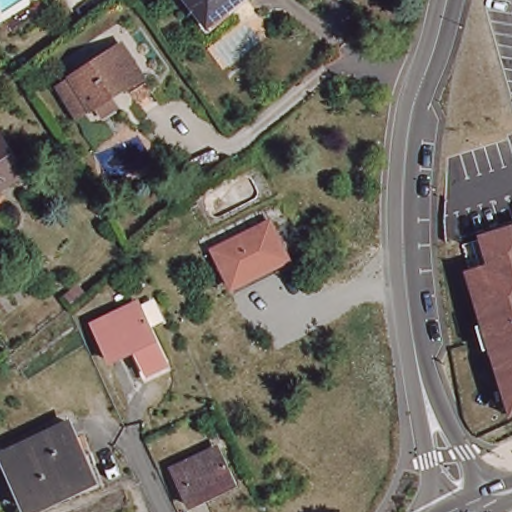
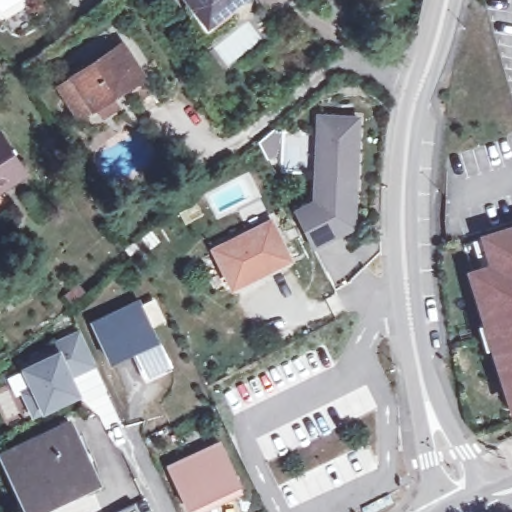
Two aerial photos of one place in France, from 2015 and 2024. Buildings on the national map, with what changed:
unchanged [(190,0),(237,0),(232,4),(208,23),(205,20),(190,0)]
unchanged [(101,116),(95,106),(78,117),(57,87),(121,45),(143,77),(153,92),(137,103),(126,87),(125,85),(109,97),(115,106),(101,116)]
new [(316,192),(320,117),(359,119),(355,194),(353,227),(312,247),(295,212),(315,202),(316,192)]
unchanged [(5,199),(0,202),(0,144),(4,142),(28,181),(11,192),(10,190),(2,195),(5,199)]
demolished [(512,151),(512,226),(510,227),(502,202),(487,207),(480,185),(511,175),(504,154),(512,151)]
unchanged [(290,263),(232,292),(213,254),(270,225),(290,263)]
unchanged [(466,271),(488,262),(480,235),(512,225),(512,414),(511,415),(466,271)]
unchanged [(155,306),(166,327),(152,334),(169,368),(150,378),(137,352),(110,366),(91,327),(108,320),(138,305),(141,311),(142,312),(155,306)]
new [(34,387),(25,369),(58,353),(54,345),(80,332),(95,363),(80,370),(76,360),(65,365),(78,393),(34,413),(24,392),(34,387)]
unchanged [(26,505),(2,454),(70,422),(79,443),(96,478),(87,482),(52,499),(29,510),(26,505)]
unchanged [(236,483),(190,506),(171,467),(218,445),(236,483)]
new [(138,512),(111,512),(133,502),(138,512)]

